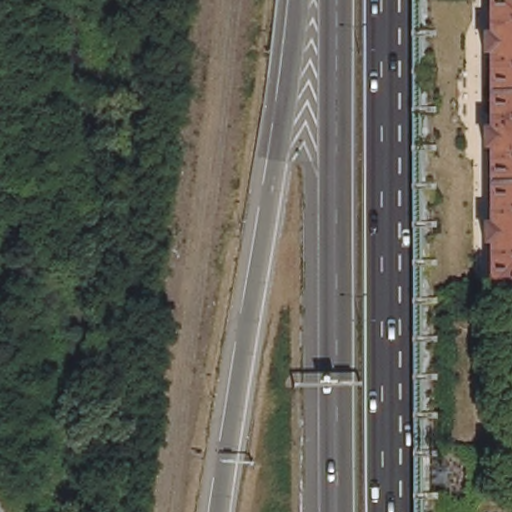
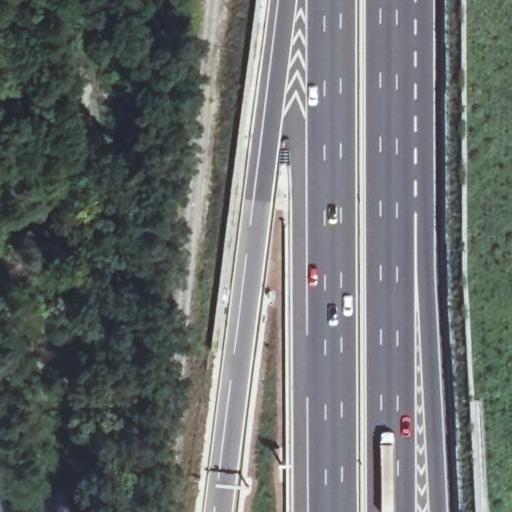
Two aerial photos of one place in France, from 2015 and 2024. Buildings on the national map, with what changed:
demolished [(493,256),(493,242),(486,242),(486,225),(493,225),(493,210),(493,206),(493,161),(493,157),(493,147),(486,147),(486,130),(493,130),(493,120),(493,115),(492,71),(492,66),(492,52),(485,52),(485,35),(492,35),(492,21),(492,16),(492,0),(512,0),(512,284),(493,285),(493,261),(493,256)]

